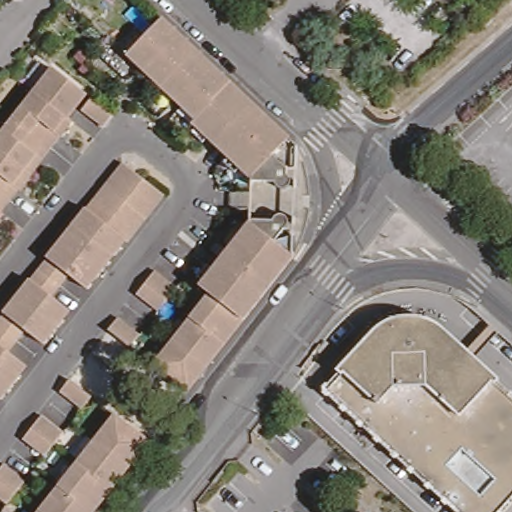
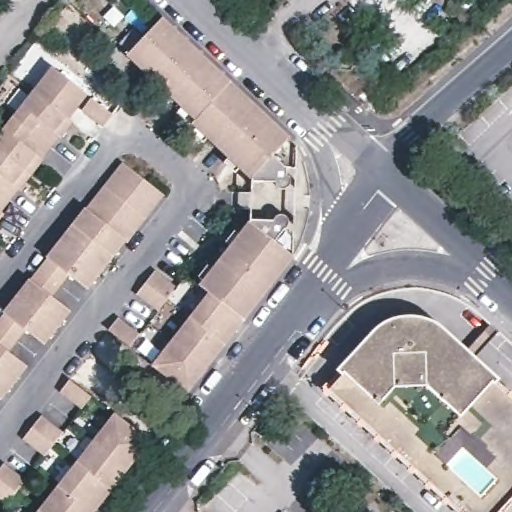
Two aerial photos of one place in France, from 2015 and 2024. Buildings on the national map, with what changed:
unchanged [(279,124),(288,132),(293,139),(298,145),(296,167),(288,167),(287,172),(288,173),(289,174),(289,175),(289,176),(289,178),(288,179),(288,180),(287,181),(286,181),(286,182),(285,182),(284,182),(283,182),(281,182),(280,182),(279,182),(278,181),(278,180),(277,180),(276,179),(276,178),(276,176),(253,175),(193,120),(196,116),(128,51),(163,15),(168,20),(255,101),(279,124)]
unchanged [(80,86),(86,91),(78,103),(68,115),(72,119),(0,210),(0,132),(53,65),(80,86)]
unchanged [(113,112),(103,125),(81,108),(91,95),(113,112)]
unchanged [(128,239),(125,237),(87,285),(69,271),(51,293),(70,307),(43,341),(25,326),(8,349),(26,363),(0,396),(0,315),(123,160),(165,192),(128,239)]
unchanged [(148,367),(205,295),(196,288),(246,225),(266,231),(267,230),(268,229),(269,228),(269,227),(270,227),(271,227),(271,226),(273,226),(274,226),(275,226),(276,227),(278,228),(278,229),(279,229),(279,230),(280,230),(280,231),(280,232),(280,233),(280,234),(280,235),(289,239),(289,260),(268,285),(264,290),(256,300),(250,308),(241,320),(236,326),(231,331),(231,332),(226,339),(221,344),(218,349),(216,351),(213,355),(207,363),(202,369),(197,375),(183,394),(148,367)]
unchanged [(178,285),(158,309),(136,292),(156,268),(178,285)]
unchanged [(140,332),(130,345),(108,328),(118,315),(140,332)]
unchanged [(437,353),(422,340),(416,340),(400,356),(383,340),(388,335),(392,332),(395,329),(399,326),(403,324),(408,321),(412,320),(417,319),(423,319),(428,320),(434,321),(439,323),(445,329),(453,336),(437,353)]
unchanged [(507,512),(472,512),(337,390),(383,340),(400,356),(416,340),(422,340),(437,353),(453,336),(512,390),(512,506),(507,512)]
unchanged [(75,377),(96,393),(86,405),(65,389),(75,377)]
unchanged [(36,417),(58,434),(40,458),(18,441),(36,417)]
unchanged [(148,443),(95,512),(40,512),(115,417),(148,443)]
unchanged [(25,482),(6,506),(0,501),(0,471),(4,465),(25,482)]
unchanged [(272,512),(277,507),(282,512),(272,512)]

